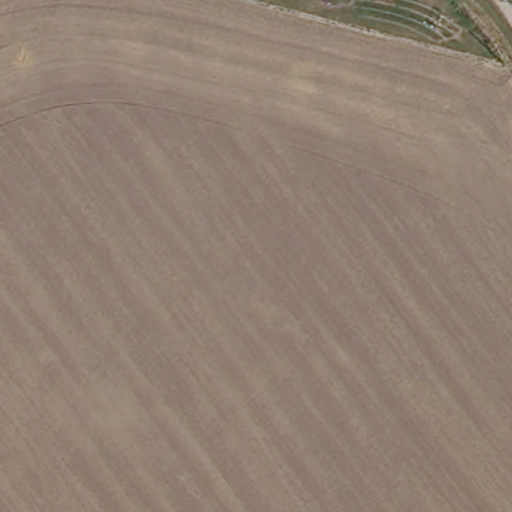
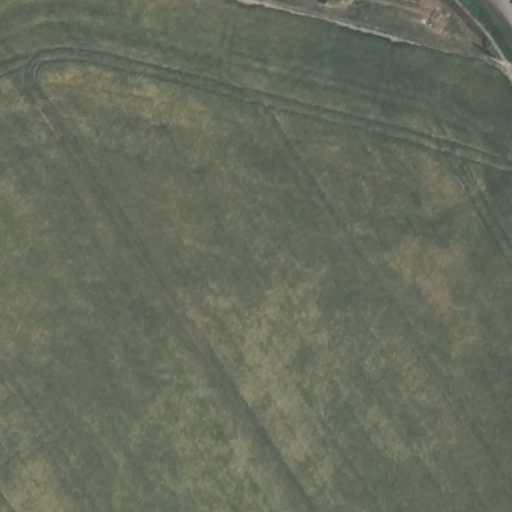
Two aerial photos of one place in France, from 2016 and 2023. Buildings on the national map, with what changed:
[]

